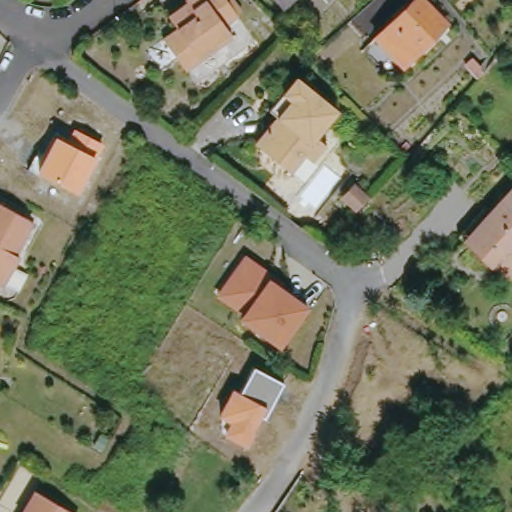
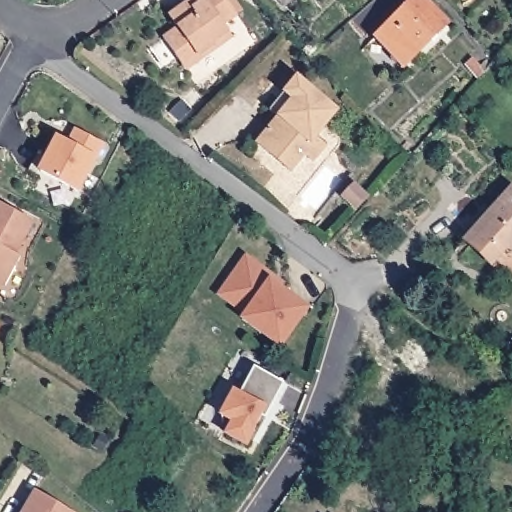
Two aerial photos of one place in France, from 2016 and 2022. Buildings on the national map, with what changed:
unchanged [(184,33),(175,20),(195,6),(194,4),(199,0),(210,0),(238,0),(249,16),(245,19),(232,29),(237,36),(240,41),(192,75),(185,64),(170,43),(184,33)]
unchanged [(282,0),(291,0),(286,4),(282,0)]
unchanged [(377,36),(415,0),(426,0),(449,23),(405,65),(377,36)]
unchanged [(479,76),(475,73),(467,63),(474,58),(482,66),(485,69),(479,76)]
unchanged [(340,110),(317,136),(327,145),(315,160),(307,154),(292,171),(258,142),(279,116),(272,109),(285,93),(299,76),(340,110)]
unchanged [(55,138),(64,141),(74,131),(102,145),(97,158),(79,192),(37,170),(55,138)]
unchanged [(369,195),(358,208),(345,196),(356,184),(369,195)]
unchanged [(512,200),(512,253),(497,269),(475,250),(465,239),(490,212),(497,217),(512,200)]
unchanged [(32,222),(15,254),(20,258),(5,285),(0,283),(0,204),(32,222)]
unchanged [(274,277),(284,284),(280,289),(307,308),(280,347),(242,319),(245,314),(219,295),(225,287),(246,258),(274,277)]
unchanged [(284,381),(264,418),(260,416),(244,447),(221,434),(227,421),(217,414),(232,386),(240,389),(252,366),(284,381)]
unchanged [(25,510),(35,492),(71,512),(28,512),(25,510)]

